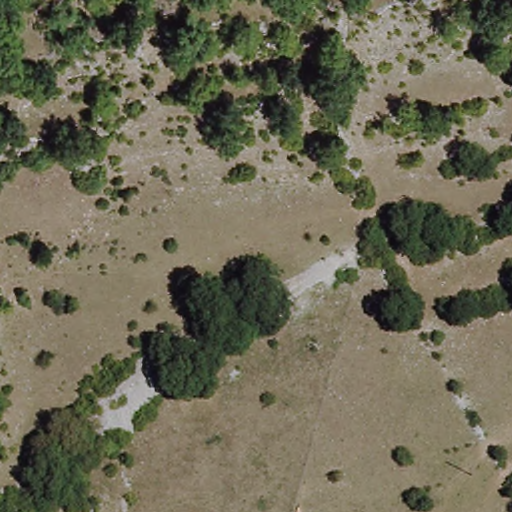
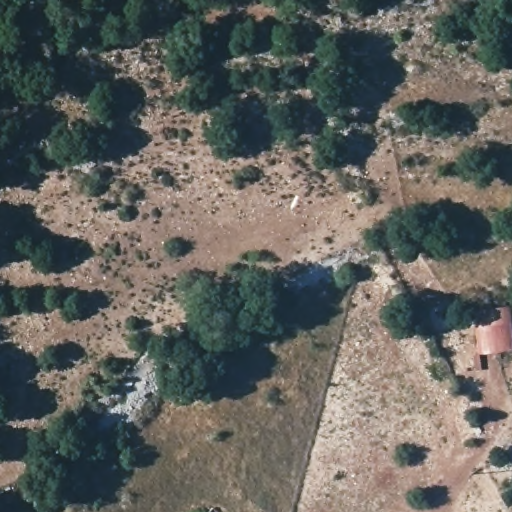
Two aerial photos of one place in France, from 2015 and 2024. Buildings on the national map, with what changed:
new [(484,354),(478,310),(507,306),(512,346),(512,350),(484,354)]

